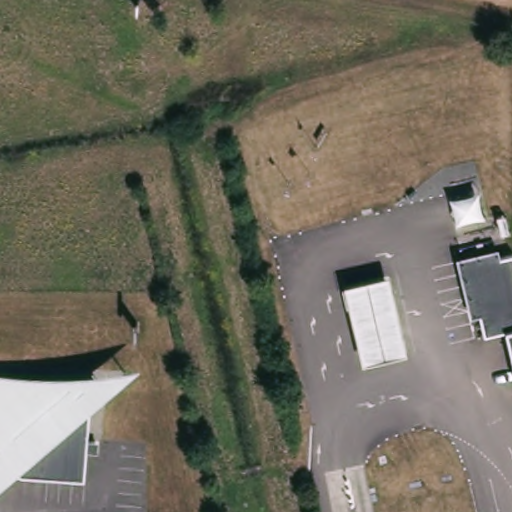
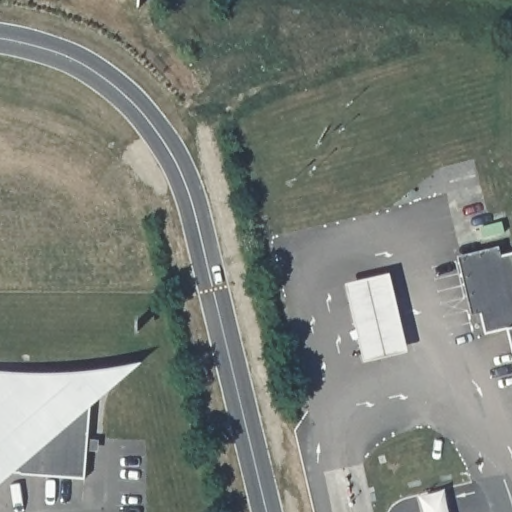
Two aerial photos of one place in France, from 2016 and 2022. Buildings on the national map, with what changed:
unchanged [(482,191),(489,217),(460,224),(454,198),(482,191)]
unchanged [(471,317),(457,256),(498,247),(500,256),(470,263),(481,314),(471,317)]
unchanged [(512,254),(512,354),(506,330),(485,334),(470,263),(512,254)]
unchanged [(389,275),(407,352),(364,363),(346,285),(389,275)]
unchanged [(99,371),(146,360),(93,411),(89,479),(21,471),(0,488),(0,369),(59,374),(99,371)]
new [(445,489),(451,512),(421,512),(417,496),(445,489)]

